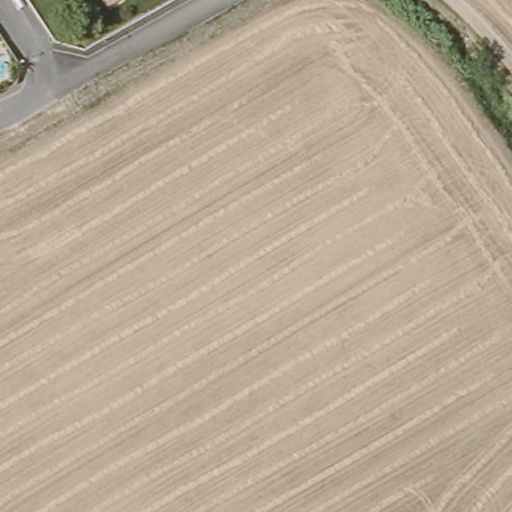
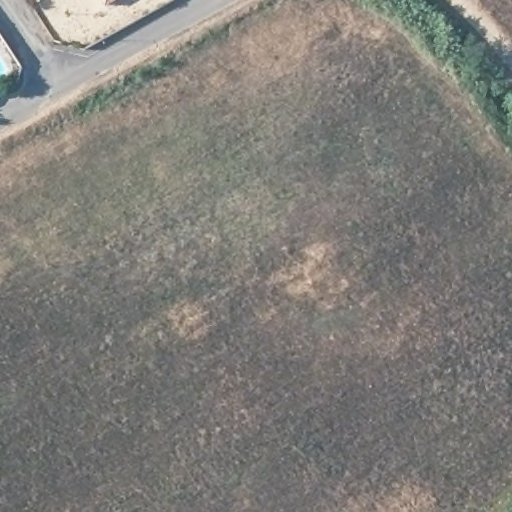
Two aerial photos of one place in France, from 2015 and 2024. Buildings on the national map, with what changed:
unchanged [(100,0),(115,0),(104,6),(100,0)]

